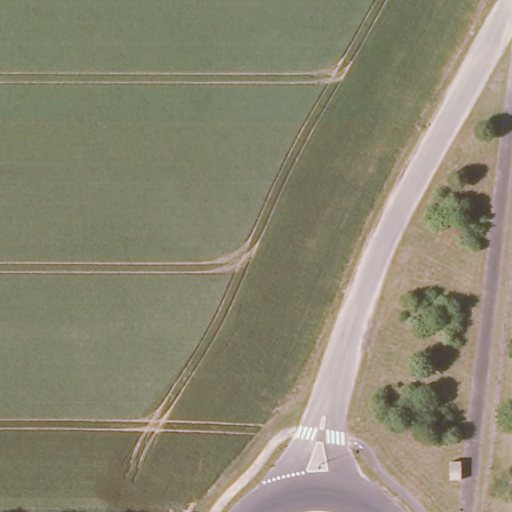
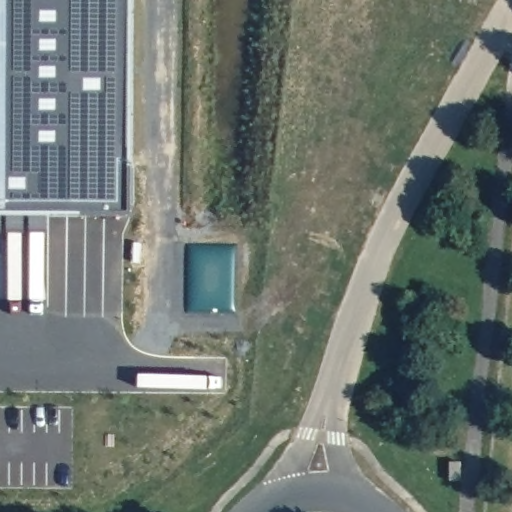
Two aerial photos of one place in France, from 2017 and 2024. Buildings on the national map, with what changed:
new [(132,216),(0,215),(0,0),(133,0),(132,216)]

